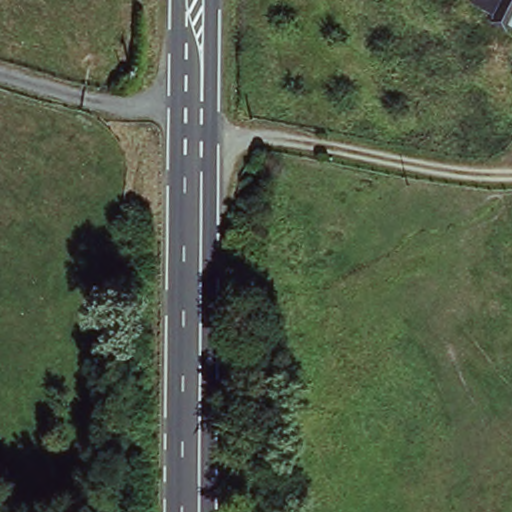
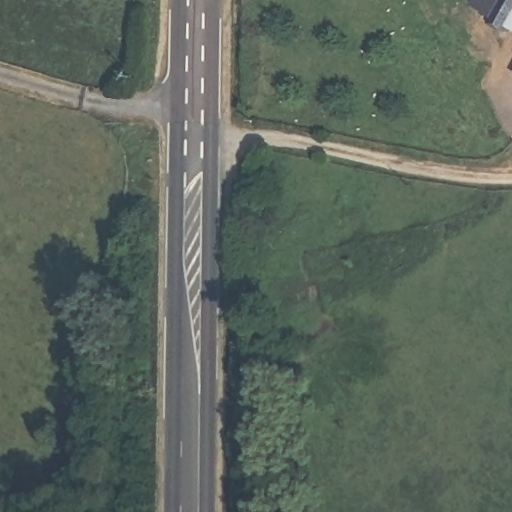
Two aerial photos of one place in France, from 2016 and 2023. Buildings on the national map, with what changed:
unchanged [(474,6),(476,0),(512,0),(512,27),(474,6)]

